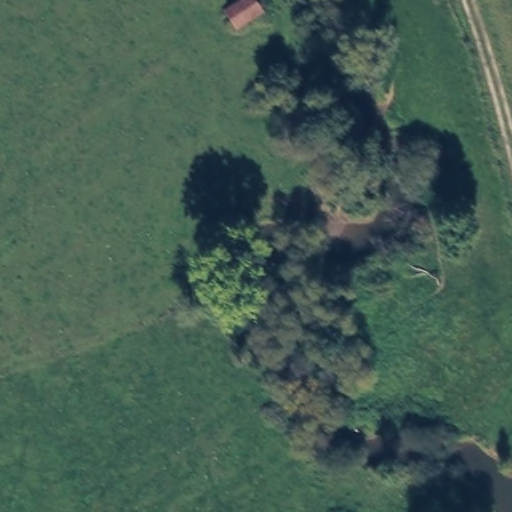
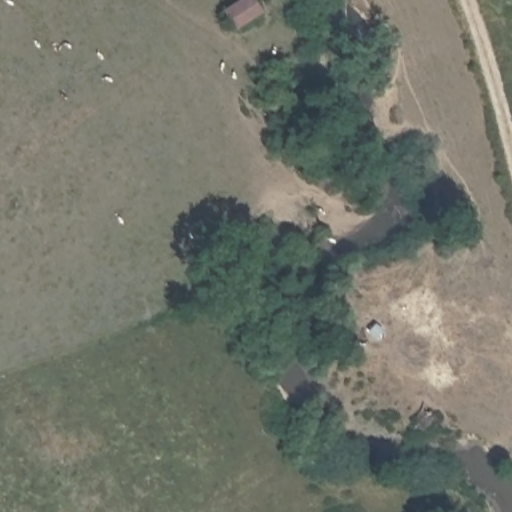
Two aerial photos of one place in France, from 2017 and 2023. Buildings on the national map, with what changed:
unchanged [(248,0),(259,0),(266,15),(240,30),(228,10),(248,0)]

